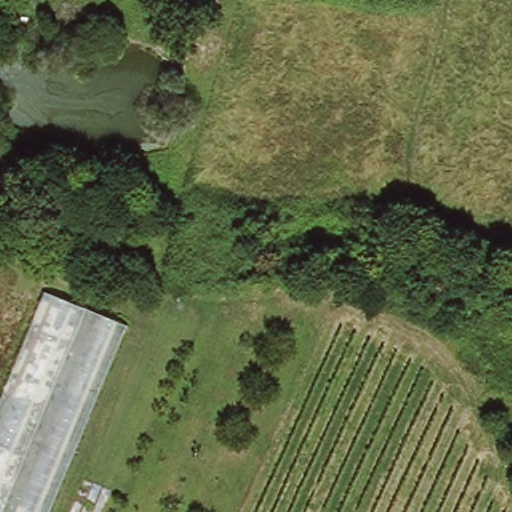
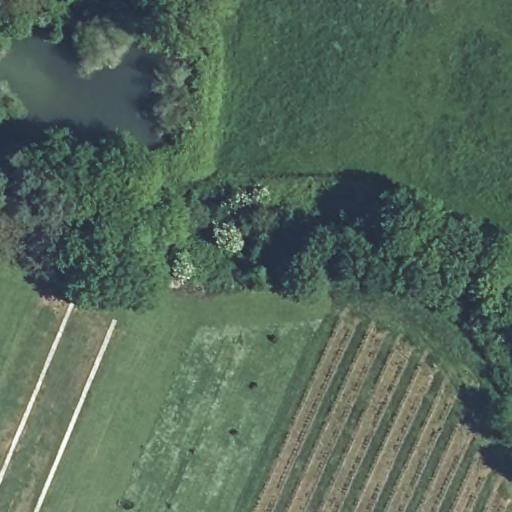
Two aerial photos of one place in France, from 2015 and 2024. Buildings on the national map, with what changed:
demolished [(0,395),(44,289),(126,323),(48,512),(0,512),(0,395)]

